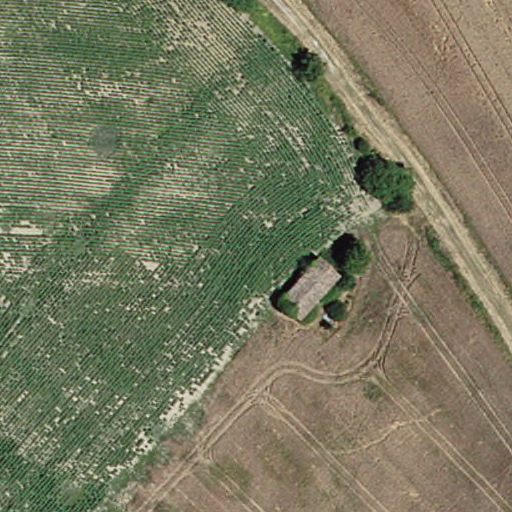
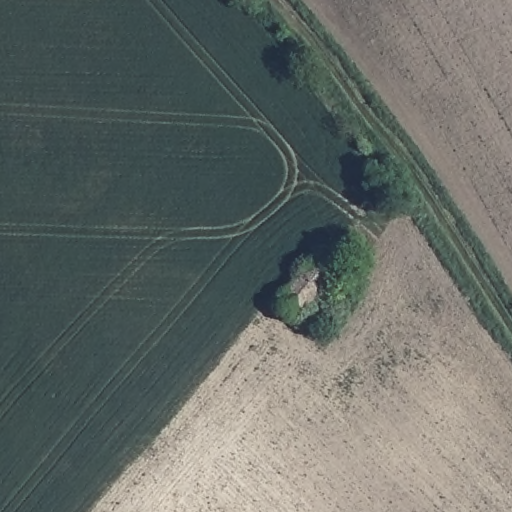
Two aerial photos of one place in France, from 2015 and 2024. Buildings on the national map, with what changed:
unchanged [(332,279),(292,320),(271,298),(310,260),(332,279)]

